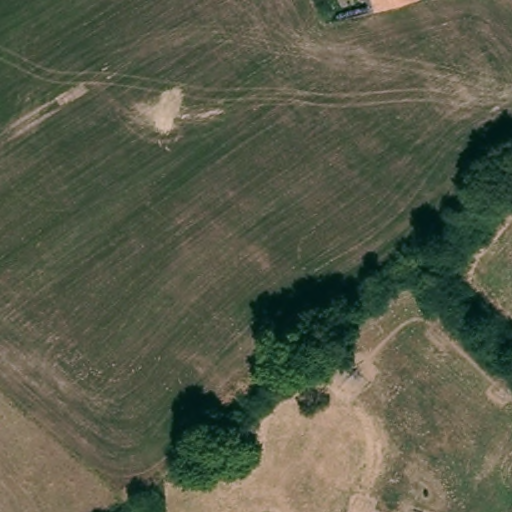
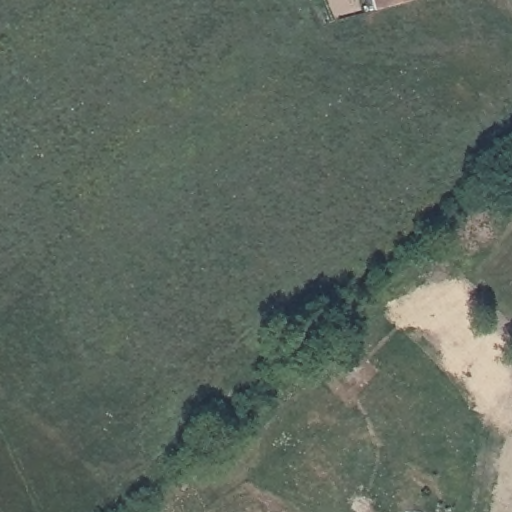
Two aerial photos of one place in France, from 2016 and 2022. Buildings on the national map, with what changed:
unchanged [(371,0),(416,0),(374,10),(371,0)]

